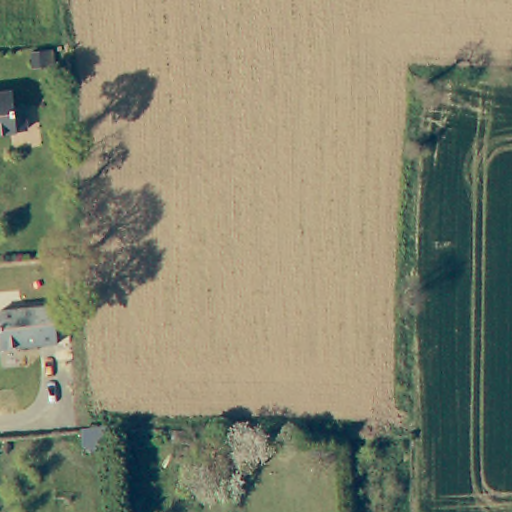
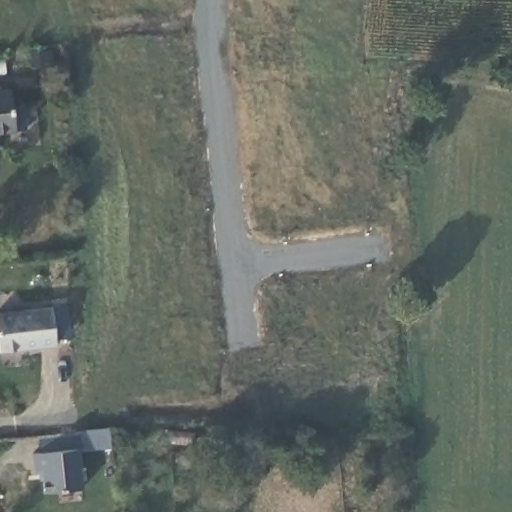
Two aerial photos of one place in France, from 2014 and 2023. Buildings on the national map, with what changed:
unchanged [(11,84),(13,99),(23,98),(26,123),(0,126),(0,86),(11,84)]
unchanged [(0,349),(0,311),(50,305),(51,313),(55,343),(0,349)]
new [(78,448),(81,489),(42,493),(40,471),(32,472),(32,452),(78,448)]

